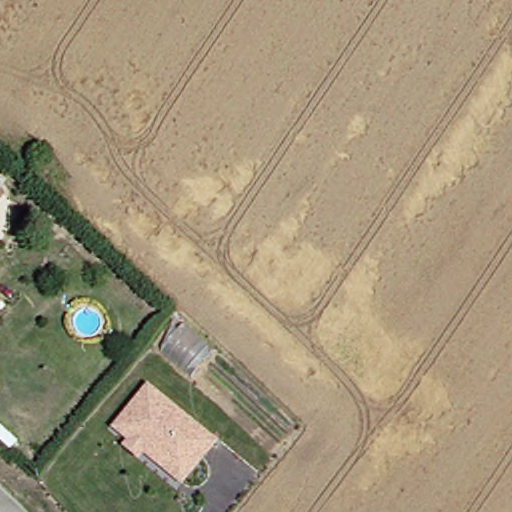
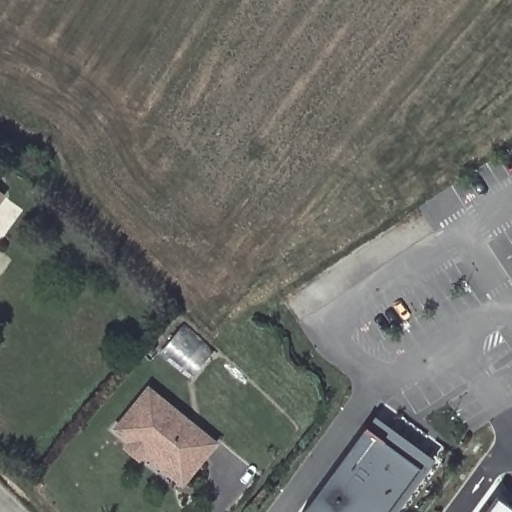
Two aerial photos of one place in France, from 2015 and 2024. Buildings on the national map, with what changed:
unchanged [(182,487),(145,456),(139,462),(122,448),(128,442),(112,428),(149,385),(219,442),(182,487)]
new [(435,461),(397,512),(390,512),(422,468),(367,427),(375,416),(435,461)]
new [(367,427),(422,468),(390,512),(303,512),(366,427),(367,427)]
new [(512,506),(512,512),(484,512),(497,495),(512,506)]

